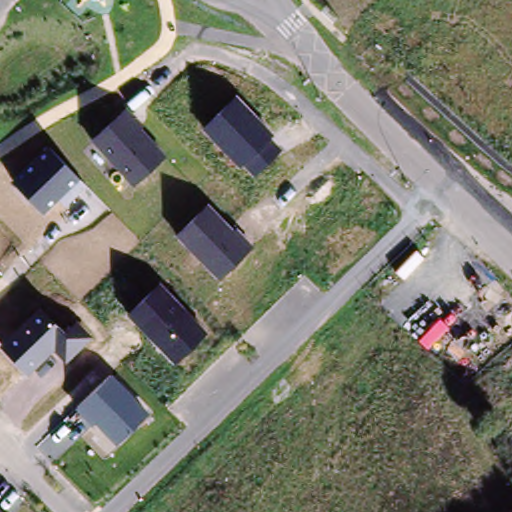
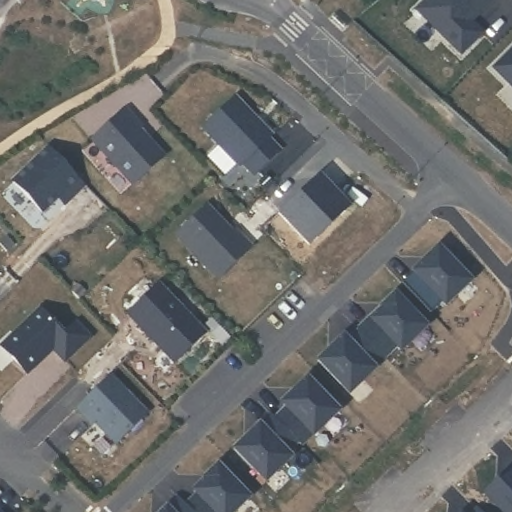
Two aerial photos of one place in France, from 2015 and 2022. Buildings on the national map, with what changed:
new [(434,0),(497,0),(475,22),(487,33),(467,54),(422,11),(434,0)]
new [(500,73),(512,61),(512,85),(500,73)]
unchanged [(275,135),(272,138),(282,150),(255,175),(244,164),(240,167),(202,128),(237,96),(275,135)]
unchanged [(134,185),(92,140),(126,109),(165,155),(134,185)]
unchanged [(66,207),(59,200),(44,214),(12,182),(49,149),(85,186),(66,207)]
new [(283,208),(320,172),(352,204),(312,243),(281,211),(283,208)]
unchanged [(219,279),(177,234),(209,205),(235,229),(237,228),(252,246),(219,279)]
new [(443,242),(474,273),(460,287),(462,288),(450,299),(447,296),(435,307),(407,278),(443,242)]
unchanged [(208,333),(174,364),(127,314),(160,283),(208,333)]
new [(388,304),(387,303),(401,289),(432,322),(418,335),(417,334),(405,346),(402,342),(391,352),(365,326),(388,304)]
unchanged [(92,337),(67,364),(54,351),(28,375),(0,346),(40,308),(65,331),(77,322),(92,337)]
new [(338,342),(339,344),(351,333),(355,336),(365,326),(391,352),(369,374),(370,376),(355,389),(324,356),(338,342)]
new [(292,404),(289,400),(300,389),(299,388),(313,374),(345,406),(331,420),(330,418),(307,441),(304,437),(282,415),(292,404)]
unchanged [(117,446),(97,424),(92,427),(77,410),(113,376),(149,413),(117,446)]
new [(255,432),(255,433),(278,411),(282,415),(304,437),(294,448),(297,451),(285,463),(287,464),(273,478),(241,446),(255,432)]
new [(200,487),(211,477),(210,475),(224,461),(255,493),(242,507),(241,506),(235,512),(202,512),(192,502),(203,491),(200,487)]
new [(507,478),(512,474),(512,509),(492,488),(505,475),(507,478)]
new [(192,502),(202,512),(168,512),(185,495),(192,502)]
unchanged [(0,512),(0,510),(1,512),(0,512)]

